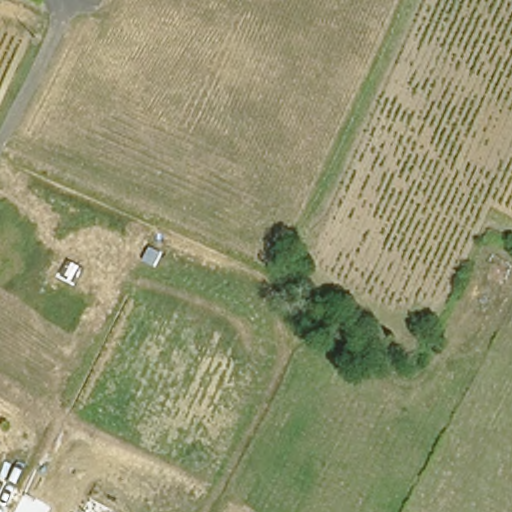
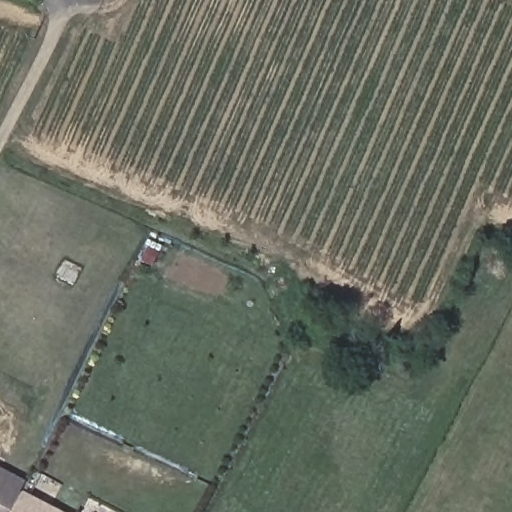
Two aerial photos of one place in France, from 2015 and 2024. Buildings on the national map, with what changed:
new [(30,481),(26,489),(67,512),(0,512),(0,465),(30,481)]

